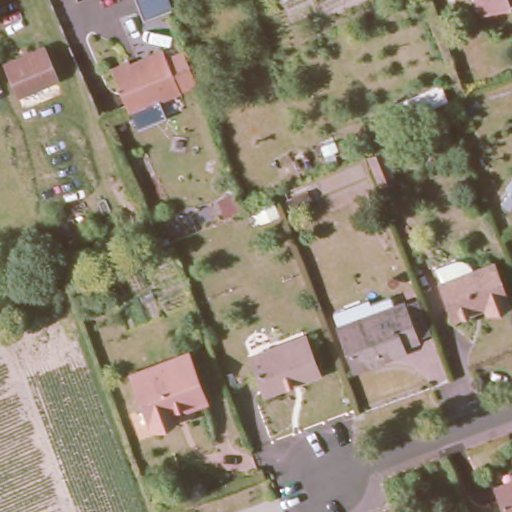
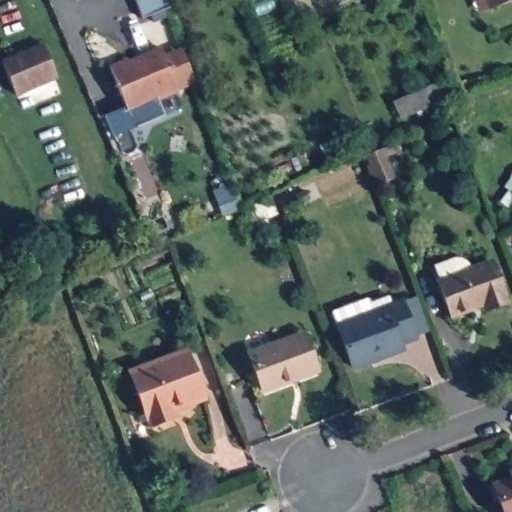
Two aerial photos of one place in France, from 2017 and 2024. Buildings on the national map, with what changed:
unchanged [(512,0),(492,7),(490,0),(512,0)]
unchanged [(6,63),(48,45),(61,77),(20,94),(6,63)]
unchanged [(183,90),(161,99),(160,97),(131,109),(114,67),(131,60),(132,62),(141,58),(165,48),(183,90)]
unchanged [(392,104),(438,84),(445,98),(399,119),(392,104)]
unchanged [(398,149),(383,155),(392,176),(378,182),(366,154),(395,142),(398,149)]
unchanged [(308,198),(290,206),(285,196),(304,189),(308,198)]
unchanged [(511,297),(490,305),(488,298),(455,310),(443,277),(496,257),(511,297)]
unchanged [(399,337),(401,344),(352,362),(337,320),(401,296),(415,331),(399,337)]
unchanged [(320,370),(266,390),(253,354),(307,334),(320,370)]
unchanged [(203,398),(172,409),(175,416),(148,425),(130,372),(185,351),(203,398)]
unchanged [(511,477),(509,471),(512,470),(512,512),(503,512),(492,484),(511,477)]

